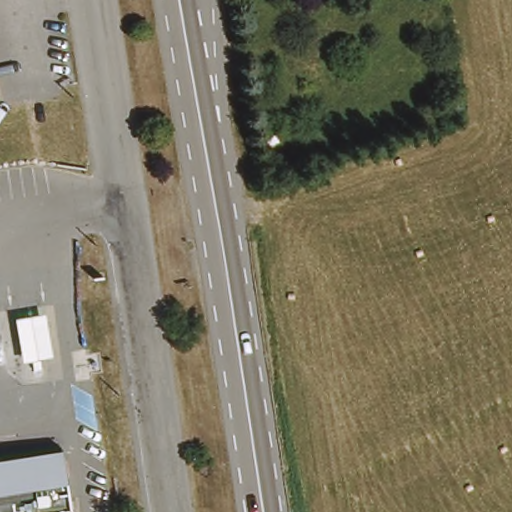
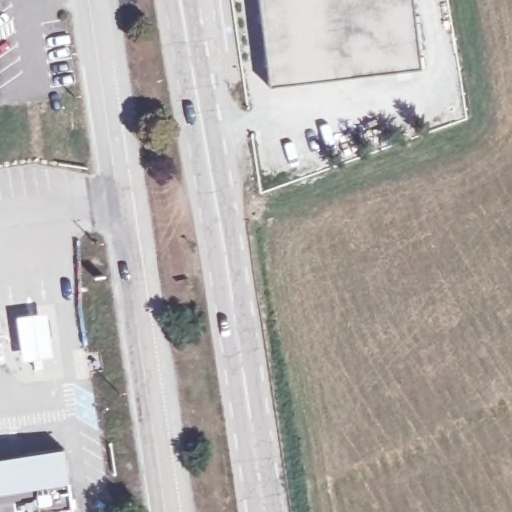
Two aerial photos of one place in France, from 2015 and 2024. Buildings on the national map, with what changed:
new [(410,0),(417,66),(269,85),(259,0),(410,0)]
unchanged [(49,313),(53,350),(24,355),(20,319),(49,313)]
new [(75,480),(79,500),(29,507),(25,488),(0,492),(0,460),(70,450),(75,480)]
unchanged [(0,498),(0,492),(25,488),(29,507),(79,500),(80,512),(0,512),(0,511),(2,511),(0,498)]
new [(0,511),(0,498),(2,511),(0,511)]

